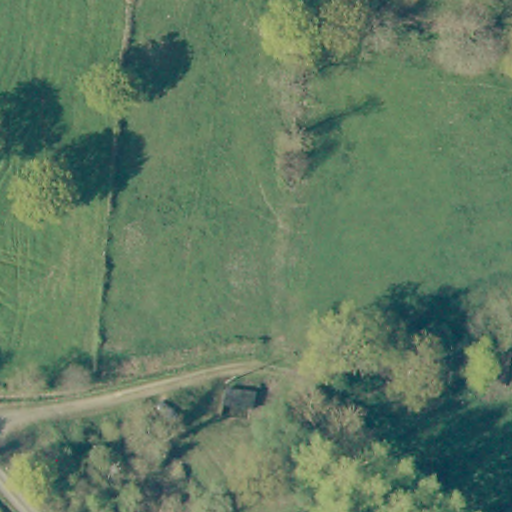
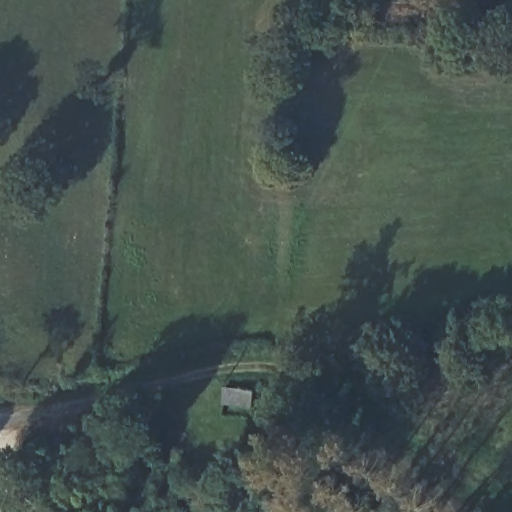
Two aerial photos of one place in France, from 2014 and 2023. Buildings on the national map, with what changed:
unchanged [(253,392),(250,409),(221,405),(224,389),(253,392)]
unchanged [(332,416),(340,412),(346,424),(338,428),(332,416)]

